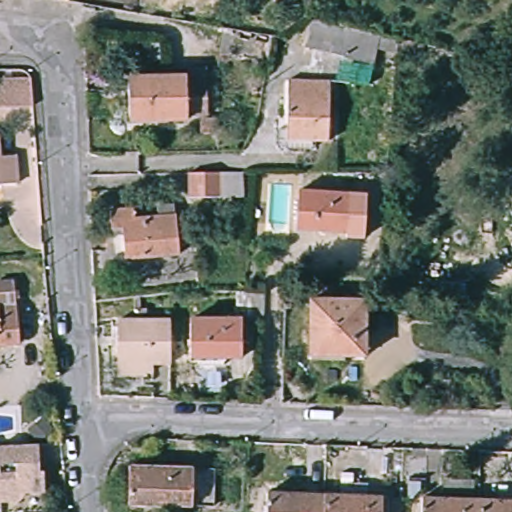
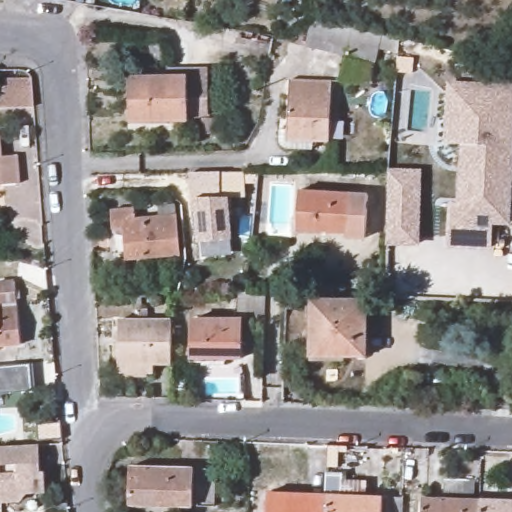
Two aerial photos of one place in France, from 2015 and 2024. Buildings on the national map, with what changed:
unchanged [(398,52),(379,47),(375,62),(304,44),(310,20),(398,41),(398,52)]
unchanged [(168,78),(168,70),(207,69),(209,115),(188,115),(188,121),(131,122),(130,78),(168,78)]
unchanged [(0,108),(0,79),(31,79),(33,108),(0,108)]
new [(512,85),(512,161),(508,221),(491,221),(490,246),(449,243),(452,202),(457,202),(477,204),(480,141),(460,140),(447,139),(452,81),(512,85)]
unchanged [(331,82),(330,141),(312,141),(312,150),(287,150),(283,148),(280,146),(278,143),(277,140),(278,134),(278,128),(288,129),(289,82),(331,82)]
new [(460,140),(480,141),(477,204),(457,202),(460,140)]
unchanged [(15,155),(17,184),(0,186),(0,156),(15,155)]
new [(389,169),(420,170),(418,242),(386,241),(389,169)]
unchanged [(244,195),(189,196),(189,172),(244,172),(244,195)]
unchanged [(367,195),(365,238),(346,238),(347,232),(297,230),(299,192),(367,195)]
new [(233,239),(230,239),(232,254),(204,256),(202,241),(199,241),(194,199),(193,196),(229,195),(233,239)]
unchanged [(131,209),(132,220),(155,217),(154,208),(171,206),(176,255),(122,260),(120,230),(109,232),(106,212),(131,209)]
unchanged [(11,281),(16,344),(0,346),(0,283),(11,281)]
unchanged [(333,288),(333,301),(365,302),(364,357),(309,355),(312,288),(333,288)]
unchanged [(230,304),(207,302),(207,292),(229,292),(230,304)]
unchanged [(265,298),(264,325),(246,324),(247,298),(265,298)]
unchanged [(144,309),(144,317),(130,317),(130,310),(144,309)]
unchanged [(149,364),(149,370),(141,370),(141,373),(115,373),(114,321),(166,321),(166,365),(149,364)]
unchanged [(243,326),(242,365),(190,365),(191,325),(243,326)]
new [(33,391),(0,393),(0,366),(31,363),(33,391)]
unchanged [(21,447),(38,446),(40,474),(44,474),(45,494),(26,495),(19,504),(2,504),(0,481),(0,449),(21,447)]
unchanged [(216,471),(214,508),(129,505),(131,468),(216,471)]
unchanged [(444,473),(444,477),(468,478),(468,491),(438,490),(439,473),(444,473)]
unchanged [(0,505),(0,481),(2,504),(0,505)]
unchanged [(341,498),(341,487),(365,488),(365,498),(402,500),(402,512),(325,512),(326,497),(341,498)]
unchanged [(474,496),(473,512),(416,512),(417,493),(474,496)]
unchanged [(267,512),(268,494),(326,497),(325,512),(267,512)]
unchanged [(512,498),(512,512),(473,512),(474,496),(512,498)]

